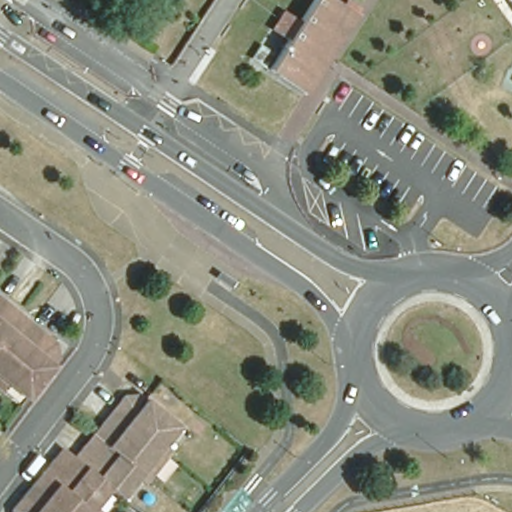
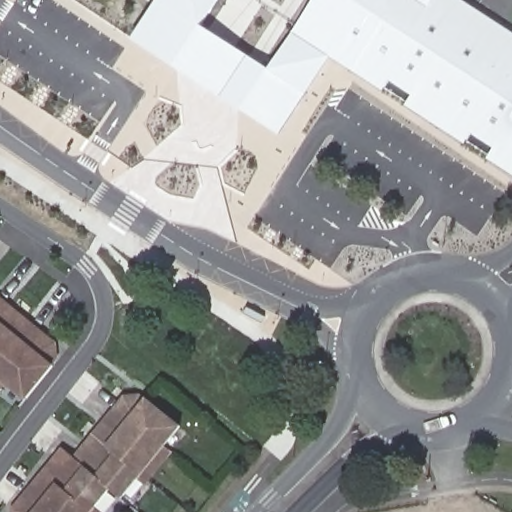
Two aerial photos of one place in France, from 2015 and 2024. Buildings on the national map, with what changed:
new [(512,178),(485,159),(492,149),(470,134),(463,144),(405,104),(411,94),(389,79),(382,89),(352,69),(331,55),(273,131),(127,41),(153,0),(216,0),(202,23),(265,69),(308,0),(463,0),(512,38),(512,178)]
demolished [(272,64),(290,40),(273,29),(286,11),(303,22),(318,0),(334,0),(359,17),(307,88),(272,64)]
unchanged [(0,390),(0,294),(11,303),(11,312),(21,320),(29,317),(59,341),(60,351),(52,361),(56,365),(29,401),(8,383),(1,392),(0,390)]
unchanged [(9,511),(31,484),(38,485),(50,471),(50,461),(61,448),(70,457),(84,441),(91,442),(100,432),(100,423),(122,397),(134,396),(141,402),(145,398),(178,427),(162,445),(170,452),(141,487),(132,480),(117,497),(109,490),(93,508),(98,512),(9,512),(9,511)]

